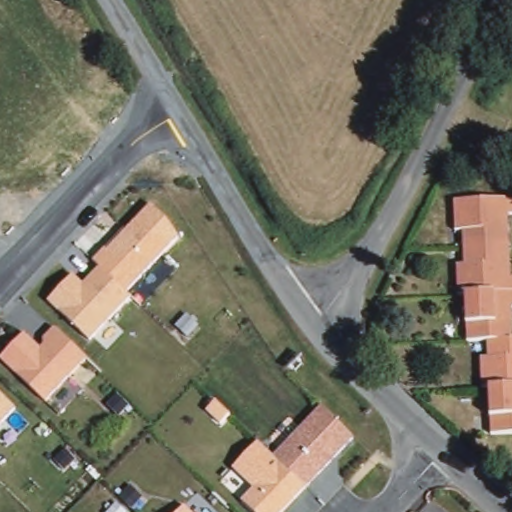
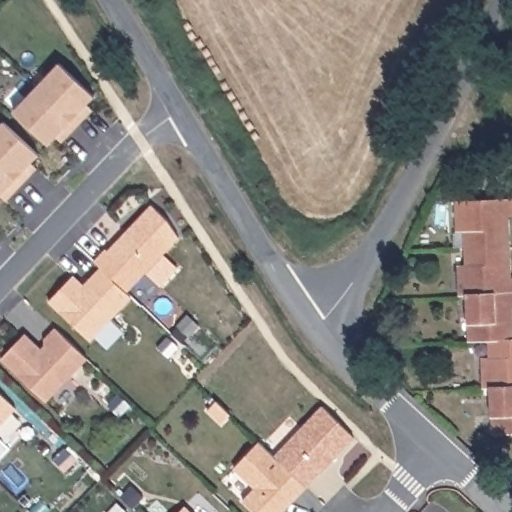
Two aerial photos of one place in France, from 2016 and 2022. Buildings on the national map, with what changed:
new [(57,134),(49,142),(15,109),(61,61),(95,94),(88,101),(93,107),(88,113),(68,134),(63,140),(57,134)]
new [(0,194),(0,125),(5,120),(40,152),(32,160),(38,166),(33,171),(23,182),(12,193),(7,198),(1,193),(0,194)]
unchanged [(472,231),(465,231),(463,201),(512,199),(512,245),(473,247),(472,231)]
unchanged [(72,276),(85,284),(101,267),(96,262),(153,203),(177,239),(124,292),(130,297),(89,342),(46,302),(72,276)]
unchanged [(512,245),(512,292),(475,294),(467,295),(466,265),(473,265),(473,247),(512,245)]
unchanged [(476,340),(475,294),(512,292),(512,339),(496,340),(476,340)]
unchanged [(26,332),(42,345),(57,327),(89,358),(45,404),(0,359),(26,332)]
unchanged [(492,388),(490,357),(496,356),(496,340),(512,339),(512,386),(498,388),(492,388)]
unchanged [(512,386),(512,432),(500,433),(498,388),(512,386)]
unchanged [(0,425),(0,392),(17,409),(0,425)]
unchanged [(253,489),(232,468),(260,440),(276,457),(324,405),(353,440),(285,512),(252,512),(241,501),(253,489)]
unchanged [(185,505),(193,512),(178,512),(185,505)]

